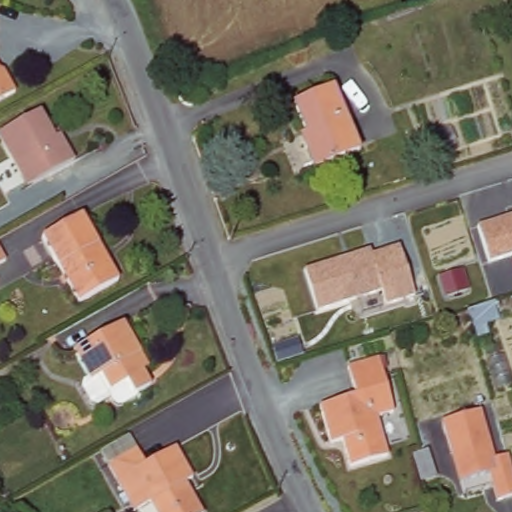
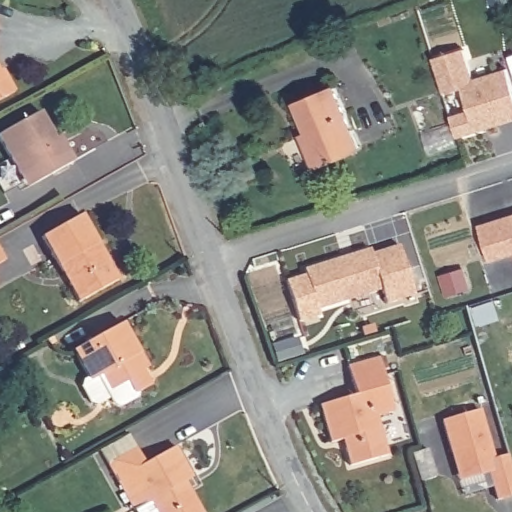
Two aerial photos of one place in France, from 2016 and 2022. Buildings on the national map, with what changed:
new [(512,90),(512,122),(457,139),(449,117),(468,110),(461,89),(444,94),(432,59),(464,49),(472,79),(505,69),(512,90)]
unchanged [(0,101),(0,70),(13,95),(0,101)]
unchanged [(332,83),(360,151),(316,170),(303,140),(310,136),(294,98),(332,83)]
unchanged [(57,146),(61,144),(73,165),(31,187),(25,177),(19,181),(0,146),(0,135),(40,114),(57,146)]
unchanged [(79,212),(116,279),(78,299),(41,232),(79,212)]
unchanged [(512,214),(512,258),(492,264),(480,224),(512,214)]
unchanged [(375,248),(376,254),(403,245),(419,297),(390,306),(384,291),(320,310),(306,269),(375,248)]
unchanged [(0,265),(0,248),(8,262),(0,265)]
unchanged [(124,328),(143,365),(136,368),(149,392),(116,409),(111,399),(96,407),(87,406),(81,399),(79,394),(82,383),(88,380),(74,354),(124,328)]
unchanged [(346,397),(336,370),(375,356),(394,409),(372,417),(387,457),(351,470),(341,442),(327,447),(313,409),(346,397)]
unchanged [(443,445),(438,426),(477,414),(490,454),(504,449),(512,473),(512,491),(500,495),(494,477),(471,484),(461,452),(447,457),(451,471),(422,481),(413,455),(433,448),(443,445)]
unchanged [(86,481),(114,466),(111,460),(139,445),(148,462),(178,446),(193,476),(186,480),(203,512),(158,512),(151,501),(136,509),(130,495),(102,510),(86,481)]

